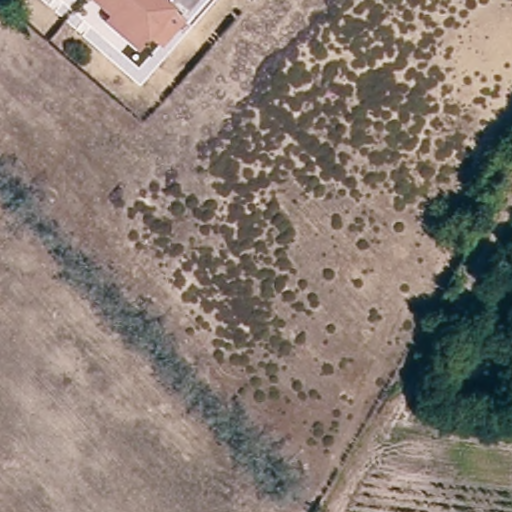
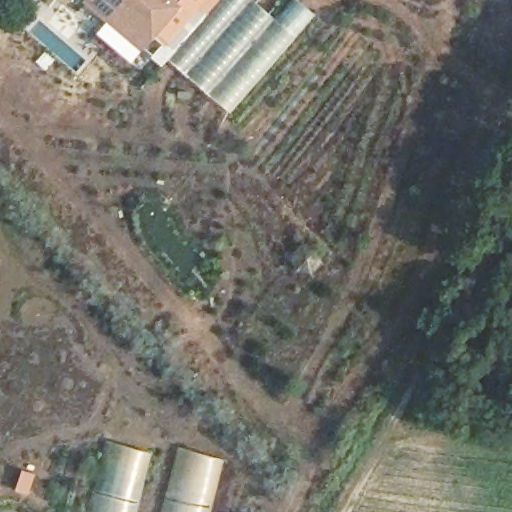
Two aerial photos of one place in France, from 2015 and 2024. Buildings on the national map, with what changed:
unchanged [(142,46),(90,0),(165,0),(175,9),(142,46)]
new [(217,0),(206,13),(200,8),(164,46),(151,36),(175,9),(170,5),(174,0),(217,0)]
new [(292,0),(299,0),(315,14),(228,110),(167,60),(164,46),(200,8),(206,13),(217,0),(254,0),(276,19),(292,0)]
new [(105,440),(149,452),(133,512),(86,512),(105,440)]
new [(178,447),(222,459),(208,512),(160,512),(178,447)]

